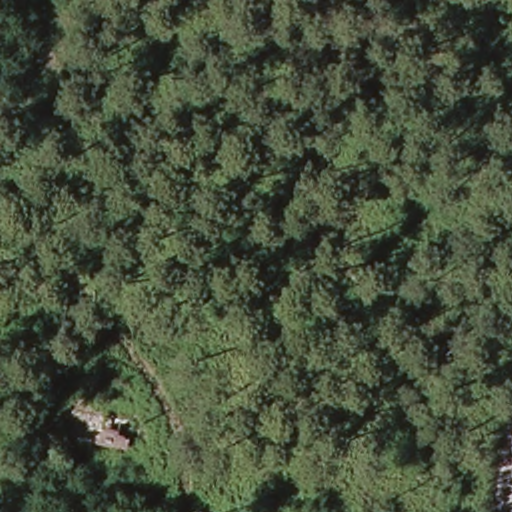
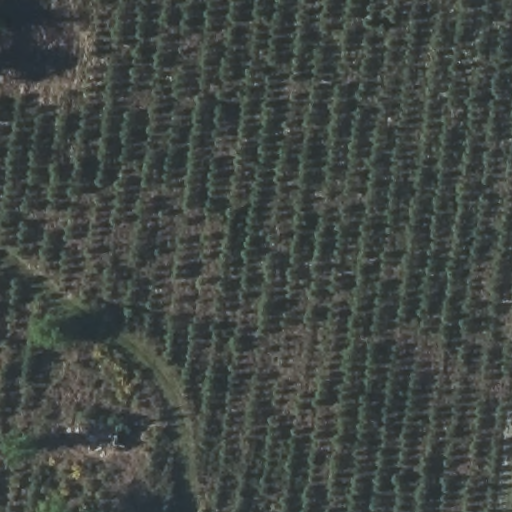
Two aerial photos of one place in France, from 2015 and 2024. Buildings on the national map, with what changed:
unchanged [(67,442),(74,412),(133,419),(126,451),(67,442)]

